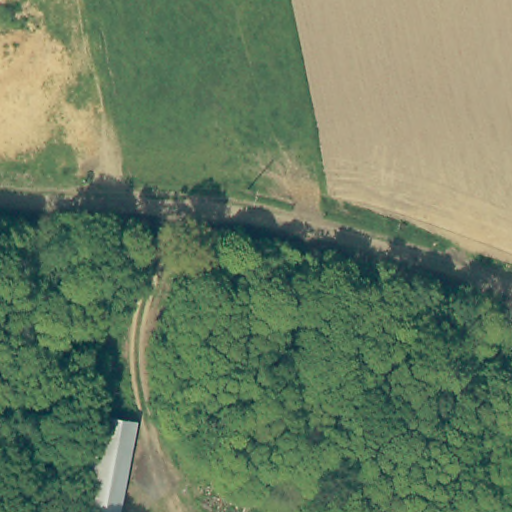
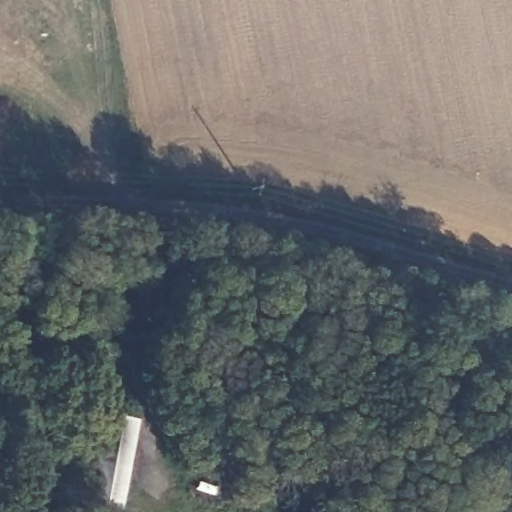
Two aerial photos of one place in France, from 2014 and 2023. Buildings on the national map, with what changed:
unchanged [(85,512),(74,510),(90,413),(128,420),(112,512),(85,512)]

